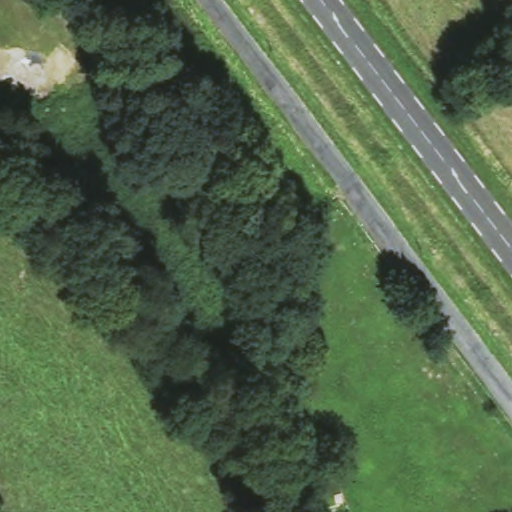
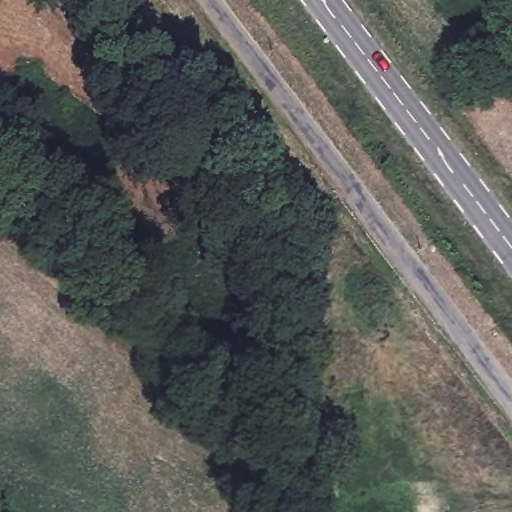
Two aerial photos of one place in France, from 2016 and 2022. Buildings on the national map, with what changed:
[]

